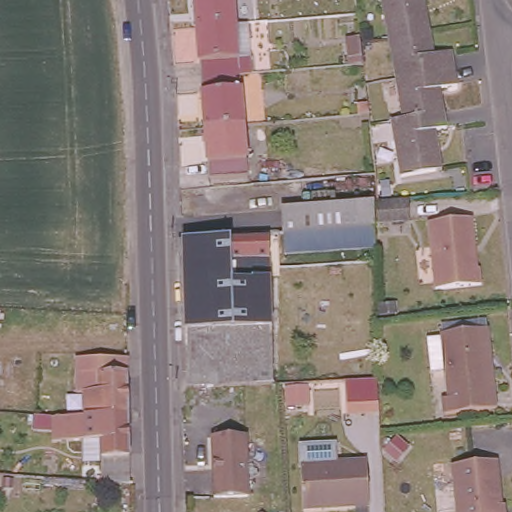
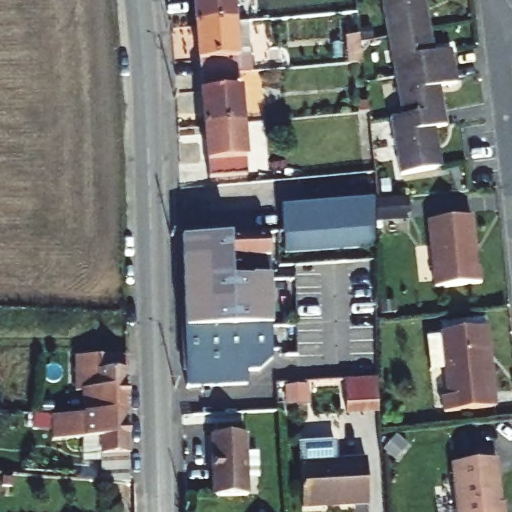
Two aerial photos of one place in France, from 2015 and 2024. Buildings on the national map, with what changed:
unchanged [(195,18),(193,0),(231,0),(232,14),(195,18)]
unchanged [(425,5),(418,7),(422,32),(430,31),(432,45),(425,46),(427,56),(452,51),(457,85),(433,88),(435,97),(441,96),(446,127),(435,129),(437,143),(431,144),(435,170),(400,177),(390,121),(400,119),(380,0),(425,0),(425,5)]
unchanged [(195,18),(232,14),(244,13),(249,65),(237,66),(199,69),(195,18)]
unchanged [(362,35),(362,41),(347,42),(347,36),(362,34),(362,35)]
unchanged [(365,63),(350,65),(350,57),(364,55),(365,63)]
unchanged [(240,115),(203,118),(199,69),(237,66),(240,115)]
unchanged [(370,112),(370,114),(357,115),(357,105),(369,104),(370,112)]
unchanged [(240,115),(244,166),(207,169),(203,118),(240,115)]
unchanged [(286,255),(282,208),(374,200),(380,200),(405,198),(406,221),(374,223),(374,247),(286,255)]
unchanged [(469,219),(472,268),(477,267),(477,286),(433,288),(429,221),(469,219)]
unchanged [(273,384),(190,388),(184,239),(267,235),(268,261),(273,384)]
unchanged [(497,363),(502,408),(448,413),(447,395),(455,394),(452,369),(437,370),(434,337),(449,336),(449,333),(448,326),(492,321),(493,329),(489,329),(492,363),(497,363)]
unchanged [(86,415),(85,393),(77,393),(77,373),(77,358),(127,356),(128,371),(130,413),(86,415)]
unchanged [(345,381),(377,379),(379,412),(347,413),(345,381)]
unchanged [(130,484),(103,482),(104,440),(55,438),(56,426),(30,426),(30,412),(35,412),(52,414),(57,414),(84,413),(84,415),(86,415),(130,413),(131,453),(130,484)]
unchanged [(214,436),(246,435),(247,496),(215,497),(214,436)]
unchanged [(457,512),(452,464),(495,460),(501,512),(457,512)]
unchanged [(367,461),(369,503),(304,506),(301,464),(367,461)]

